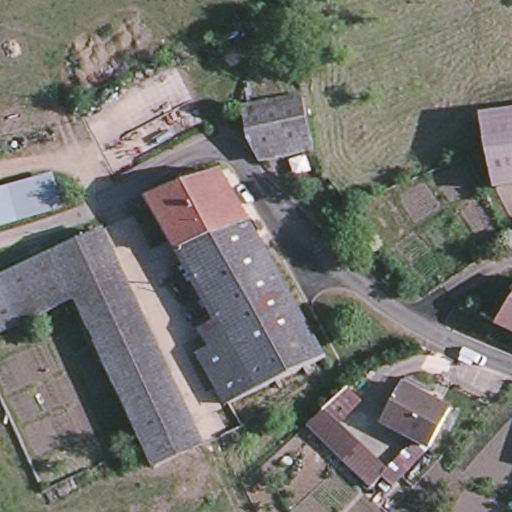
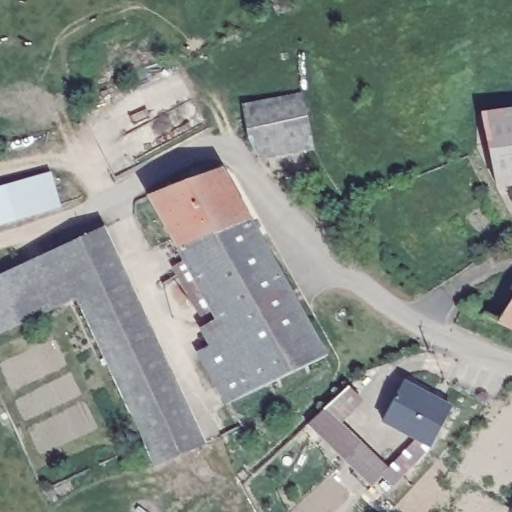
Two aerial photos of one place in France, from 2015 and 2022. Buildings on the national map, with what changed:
unchanged [(311,144),(259,159),(250,143),(243,112),(301,93),(311,144)]
unchanged [(486,113),(512,109),(512,183),(495,185),(486,113)]
unchanged [(248,220),(176,248),(146,195),(220,169),(248,220)]
unchanged [(51,170),(58,208),(0,226),(0,186),(51,170)]
unchanged [(325,357),(255,389),(228,343),(176,248),(248,220),(325,357)]
unchanged [(0,334),(0,277),(102,229),(123,277),(73,299),(0,334)]
unchanged [(200,445),(152,467),(141,444),(73,299),(123,277),(200,445)]
unchanged [(512,295),(512,327),(497,319),(512,295)]
unchanged [(255,389),(223,404),(198,360),(228,343),(255,389)]
unchanged [(382,417),(402,380),(450,406),(430,443),(390,484),(378,474),(370,483),(307,419),(322,406),(384,469),(415,434),(382,417)]

